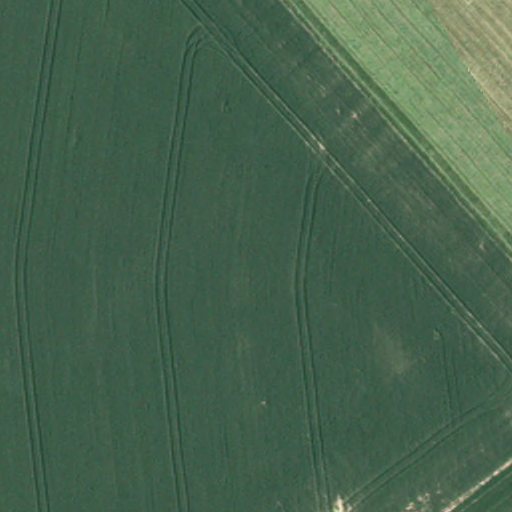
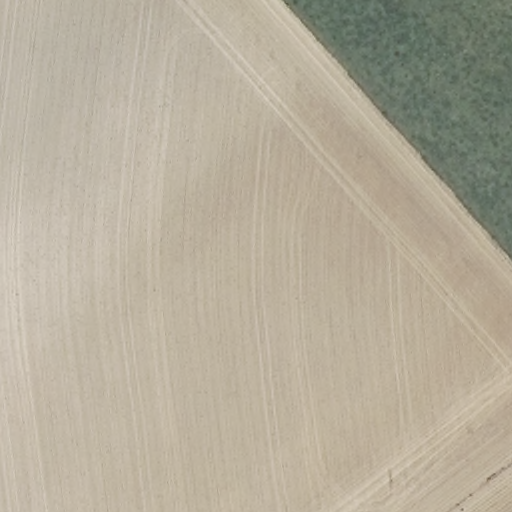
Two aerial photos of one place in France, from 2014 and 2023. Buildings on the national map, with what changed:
[]

